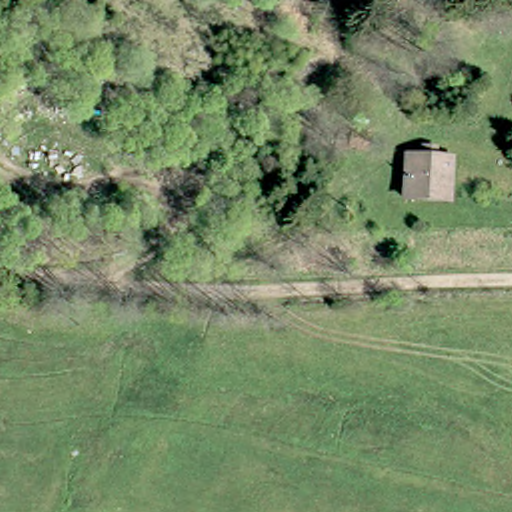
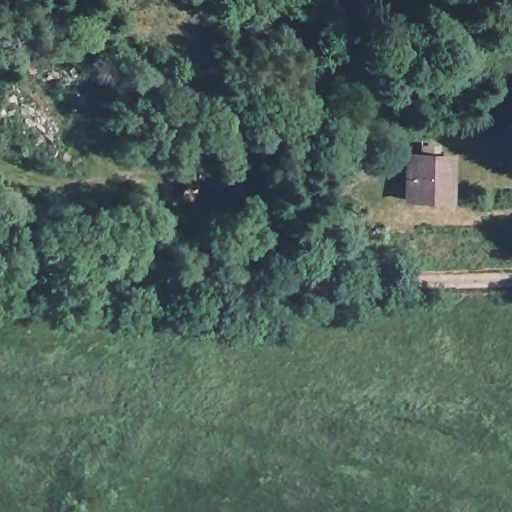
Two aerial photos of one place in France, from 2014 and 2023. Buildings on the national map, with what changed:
unchanged [(338,151),(340,135),(360,139),(358,153),(338,151)]
unchanged [(397,200),(397,167),(397,157),(409,159),(410,150),(422,150),(424,159),(443,159),(444,167),(443,200),(397,200)]

